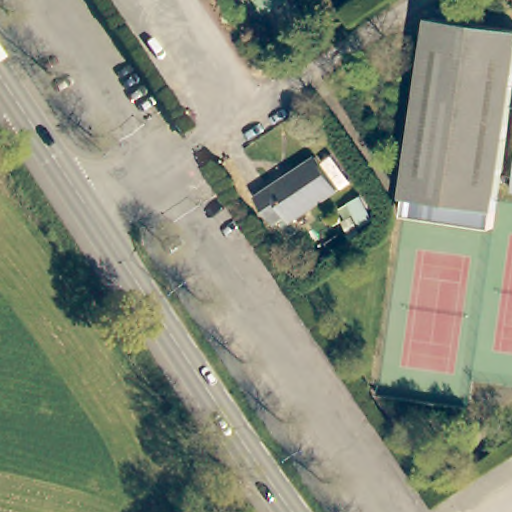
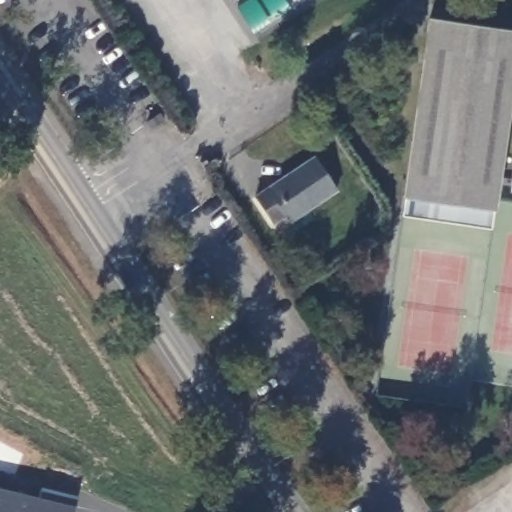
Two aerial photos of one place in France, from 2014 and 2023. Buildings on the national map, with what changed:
unchanged [(427,19),(512,30),(512,59),(488,227),(399,217),(427,19)]
unchanged [(343,186),(298,216),(293,211),(280,219),(260,191),(320,152),(343,186)]
unchanged [(308,277),(324,267),(332,281),(317,291),(308,277)]
new [(42,487),(79,497),(75,512),(0,512),(0,487),(39,497),(42,487)]

